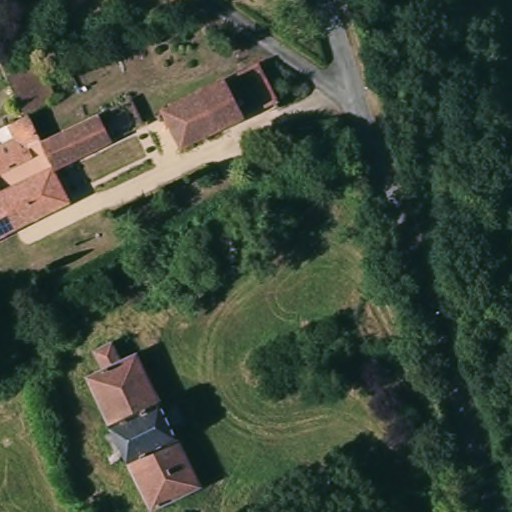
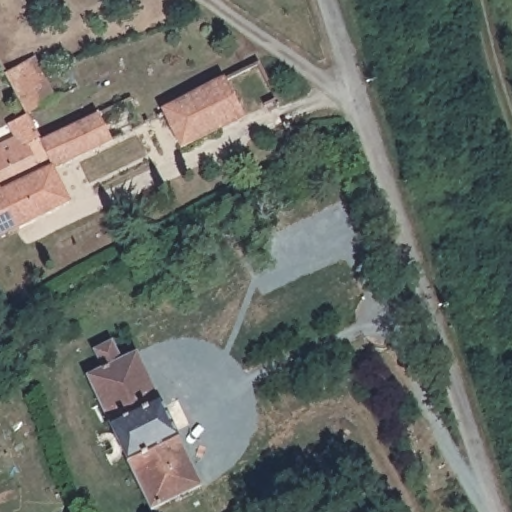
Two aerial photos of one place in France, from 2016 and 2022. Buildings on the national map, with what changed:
unchanged [(40,119),(44,127),(35,133),(30,124),(27,125),(14,97),(6,82),(9,82),(33,67),(41,82),(56,110),(40,119)]
unchanged [(146,122),(240,79),(258,117),(164,160),(146,122)]
unchanged [(51,144),(70,135),(132,103),(146,132),(59,177),(51,166),(50,164),(60,159),(51,144)]
unchanged [(15,152),(7,136),(27,125),(30,124),(35,133),(50,164),(51,166),(59,177),(54,179),(70,211),(0,250),(0,159),(15,152)]
unchanged [(90,379),(105,372),(96,353),(115,345),(123,363),(139,356),(165,409),(145,419),(162,454),(133,469),(90,379)]
unchanged [(154,512),(133,469),(162,454),(145,419),(165,409),(206,492),(166,512),(154,512)]

